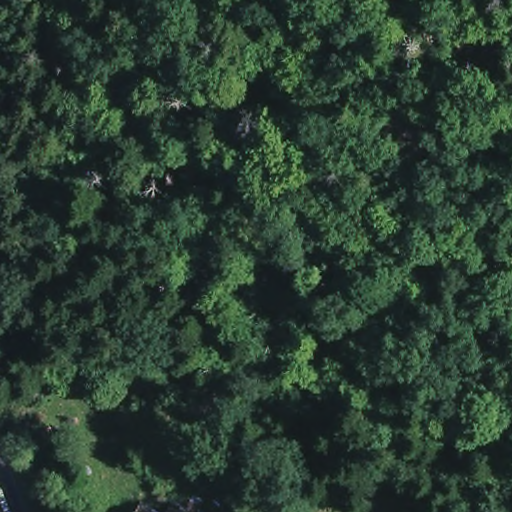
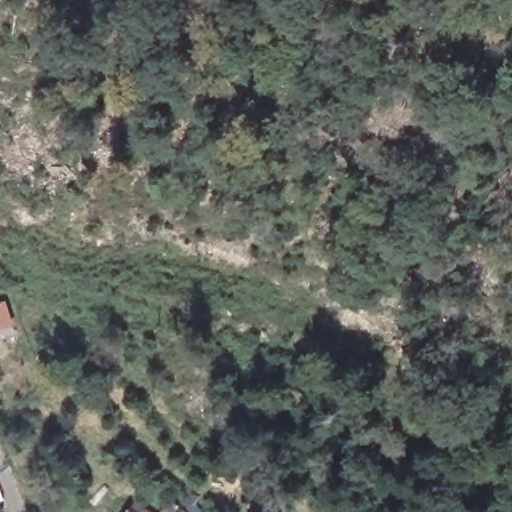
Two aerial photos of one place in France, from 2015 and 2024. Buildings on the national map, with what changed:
new [(0,333),(0,305),(6,303),(16,327),(0,333)]

